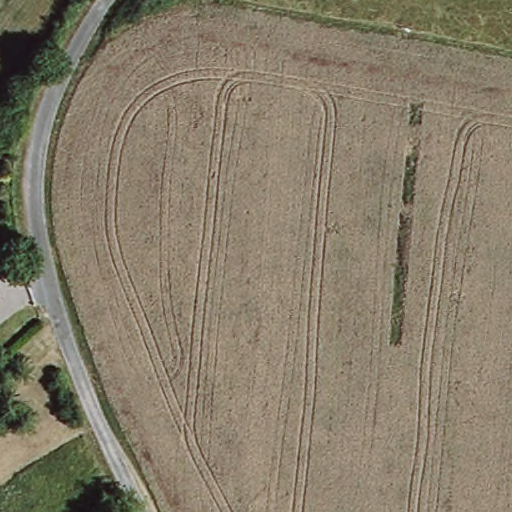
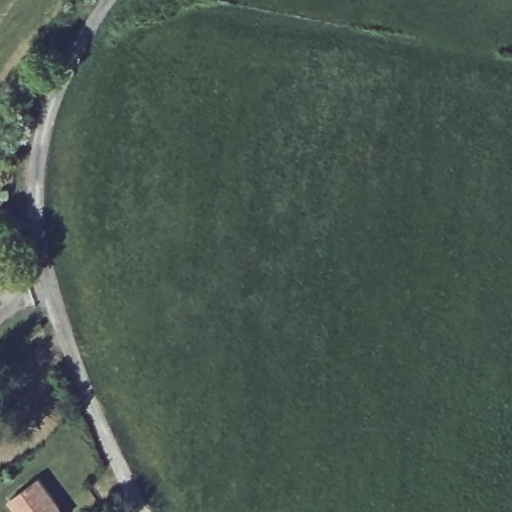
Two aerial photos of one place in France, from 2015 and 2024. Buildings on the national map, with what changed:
new [(19,512),(10,499),(41,477),(67,512),(19,512)]

